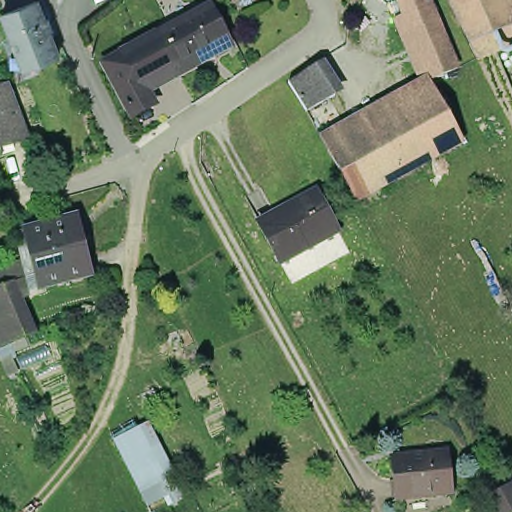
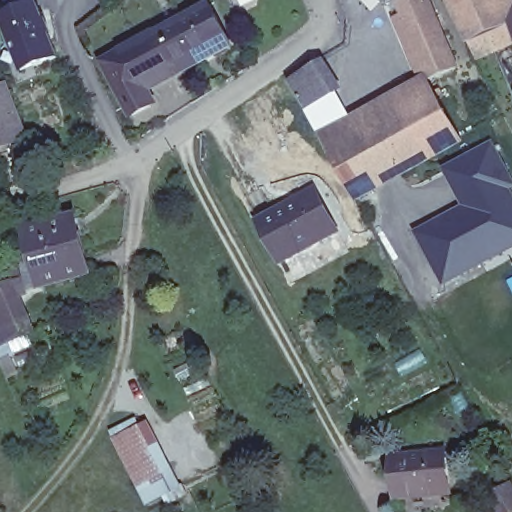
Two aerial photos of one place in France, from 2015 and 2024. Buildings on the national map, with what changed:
unchanged [(24,0),(33,0),(39,15),(41,15),(46,26),(41,29),(45,37),(48,36),(54,53),(31,61),(20,66),(14,50),(0,15),(0,9),(24,0)]
unchanged [(426,0),(459,80),(431,91),(398,11),(426,0)]
unchanged [(502,0),(512,24),(512,25),(512,27),(471,45),(452,0),(502,0)]
unchanged [(179,35),(185,33),(180,24),(188,20),(192,29),(212,19),(231,55),(198,72),(179,81),(143,100),(121,111),(103,75),(120,65),(116,56),(135,46),(139,55),(160,45),(179,35)]
unchanged [(306,106),(289,75),(317,60),(334,90),(306,106)]
unchanged [(25,127),(0,137),(0,79),(6,77),(25,127)]
unchanged [(437,101),(463,149),(385,192),(358,145),(437,101)]
new [(512,190),(512,191),(512,250),(444,286),(414,233),(462,206),(443,170),(495,142),(512,174),(512,190)]
unchanged [(358,145),(385,192),(357,208),(332,160),(358,145)]
unchanged [(322,190),(344,230),(287,261),(265,221),(322,190)]
unchanged [(23,223),(34,220),(80,207),(94,261),(49,274),(45,258),(33,262),(23,223)]
unchanged [(0,338),(0,285),(5,283),(25,328),(7,335),(0,338)]
unchanged [(131,485),(109,441),(137,422),(155,468),(131,485)]
unchanged [(399,466),(420,465),(420,469),(433,468),(433,463),(454,461),(457,502),(403,507),(399,466)]
unchanged [(498,493),(512,486),(512,512),(508,512),(498,493)]

